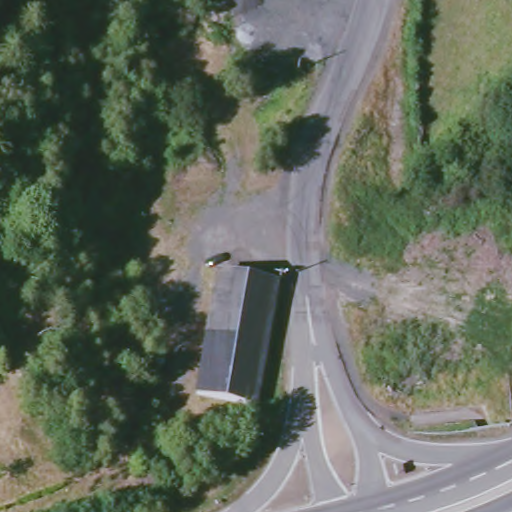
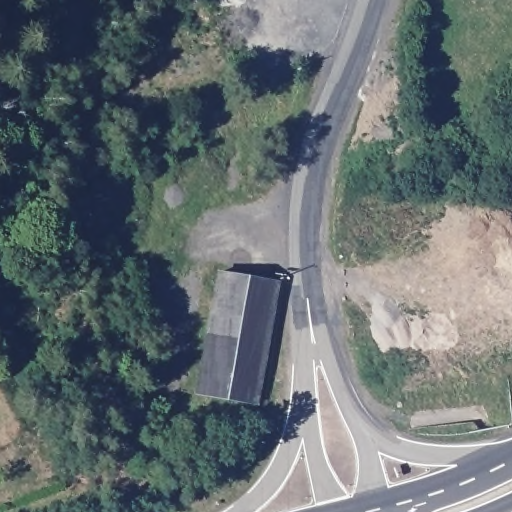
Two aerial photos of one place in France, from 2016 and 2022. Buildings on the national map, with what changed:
unchanged [(266,282),(259,406),(194,404),(199,281),(266,282)]

